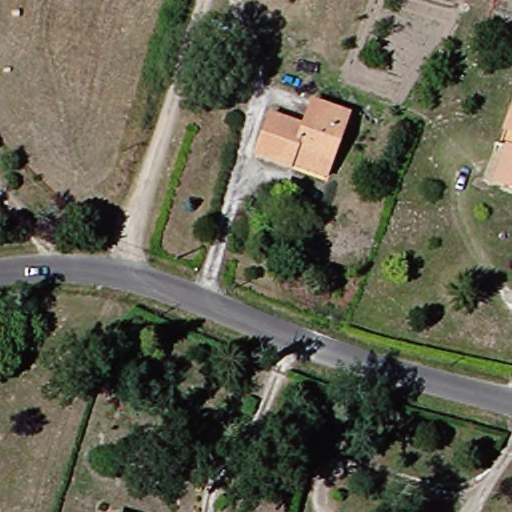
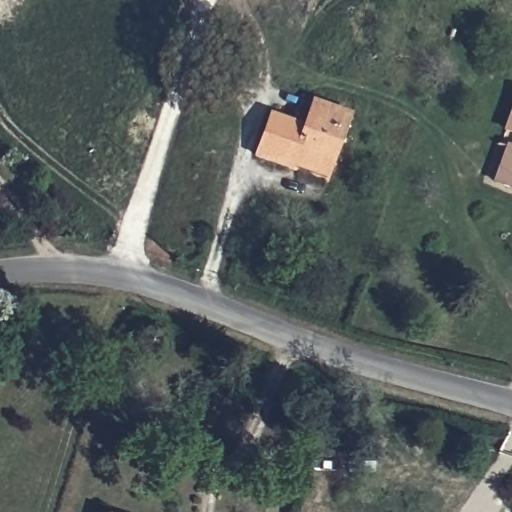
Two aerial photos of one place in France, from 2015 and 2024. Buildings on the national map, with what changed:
unchanged [(495,126),(502,107),(508,89),(512,90),(512,131),(495,126)]
unchanged [(281,161),(280,164),(245,151),(260,110),(295,122),(305,97),(340,110),(321,159),(316,174),(281,161)]
unchanged [(509,186),(485,177),(497,142),(510,147),(512,140),(512,187),(509,186)]

